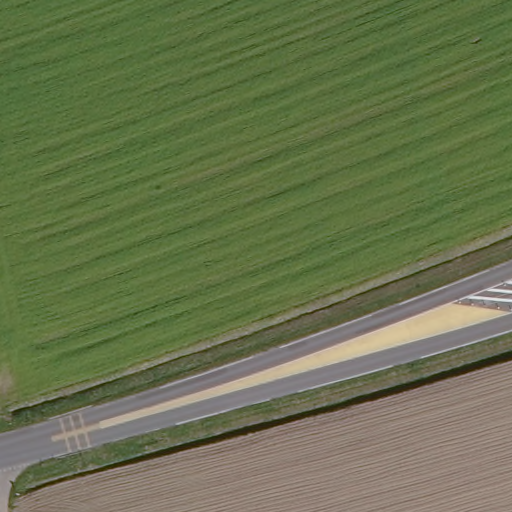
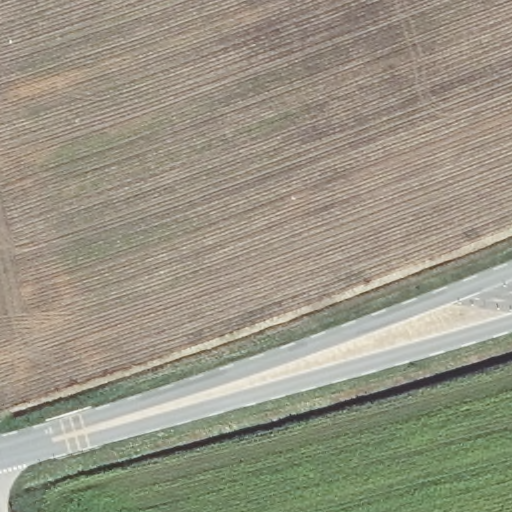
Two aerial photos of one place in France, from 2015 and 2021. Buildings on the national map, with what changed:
[]

